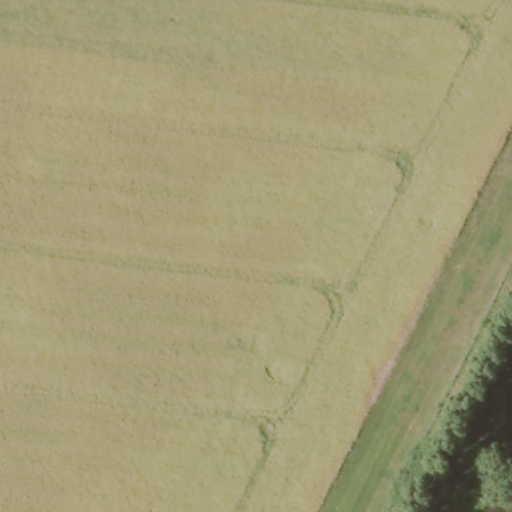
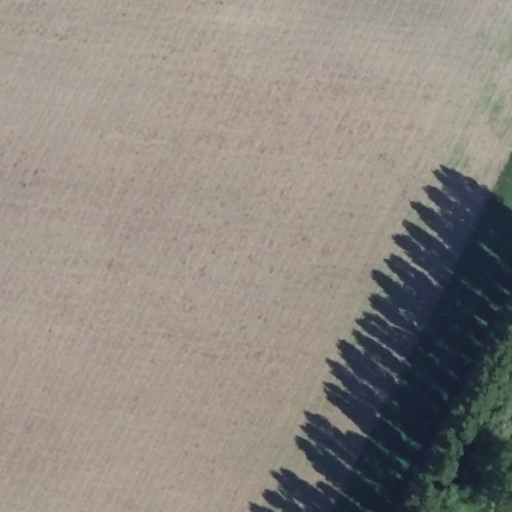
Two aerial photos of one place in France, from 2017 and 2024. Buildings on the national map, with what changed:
[]

